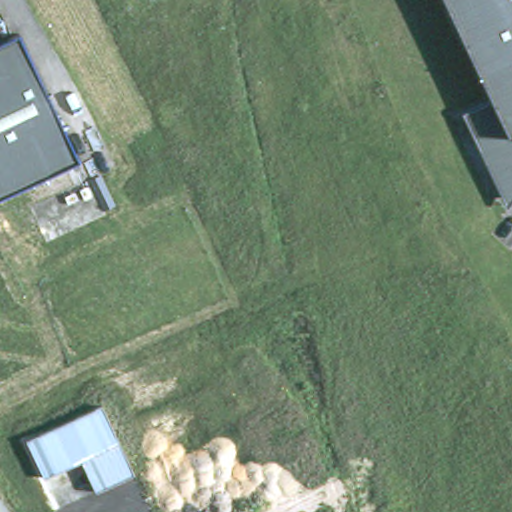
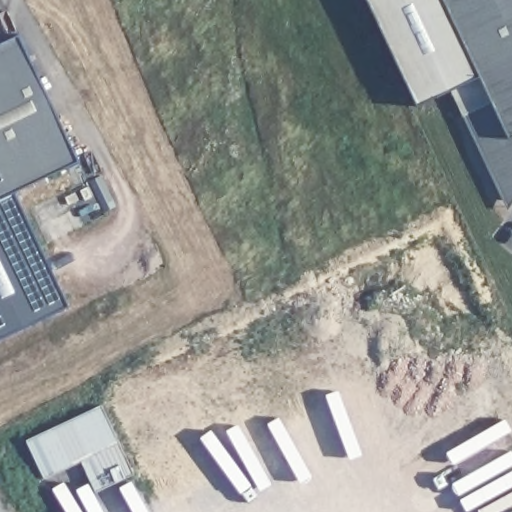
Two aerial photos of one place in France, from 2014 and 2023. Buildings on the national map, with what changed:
new [(417,105),(367,0),(444,0),(492,94),(464,109),(455,89),(417,105)]
unchanged [(507,194),(464,109),(492,94),(445,0),(512,0),(512,192),(507,194)]
unchanged [(81,155),(0,195),(0,39),(23,29),(81,155)]
new [(0,339),(0,195),(12,189),(70,306),(0,339)]
unchanged [(104,400),(136,471),(95,486),(78,460),(49,472),(29,437),(104,400)]

